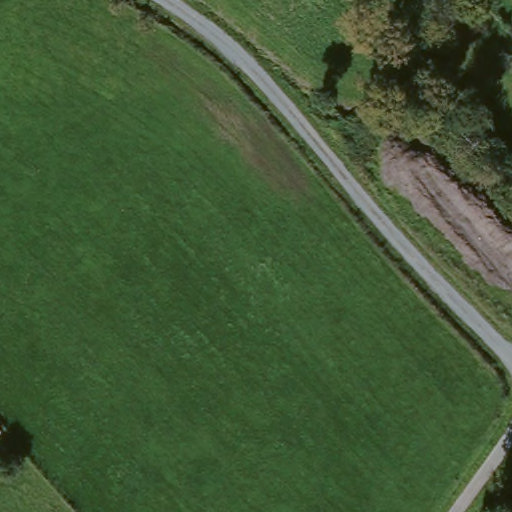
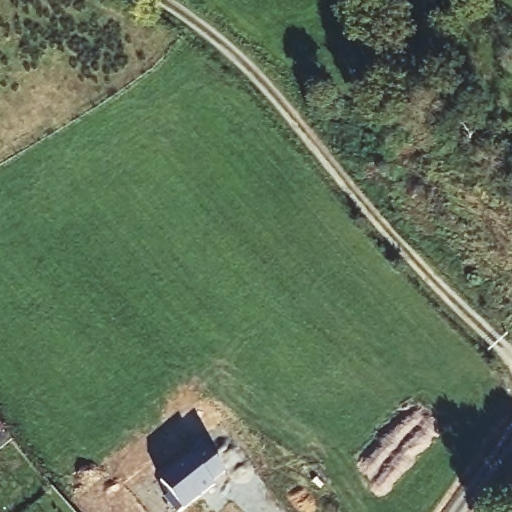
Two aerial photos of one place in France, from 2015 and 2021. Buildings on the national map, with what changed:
new [(193,460),(206,450),(223,471),(211,481),(213,484),(179,512),(178,512),(165,496),(170,492),(161,480),(191,457),(193,460)]

